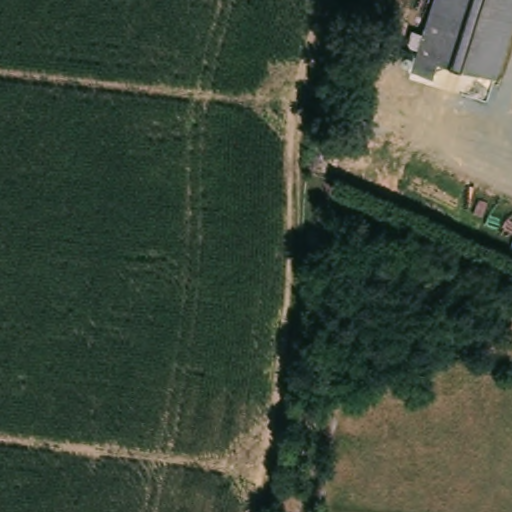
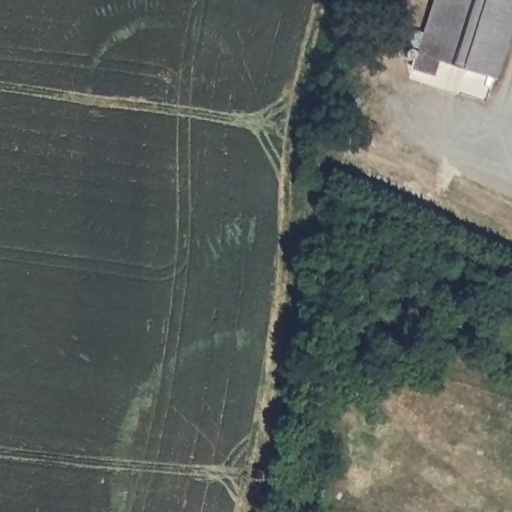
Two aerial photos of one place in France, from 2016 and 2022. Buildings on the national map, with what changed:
unchanged [(499,73),(444,58),(440,76),(418,69),(438,0),(512,0),(512,26),(499,73)]

